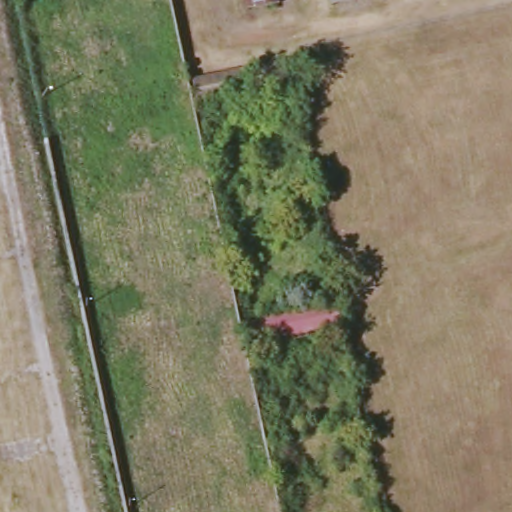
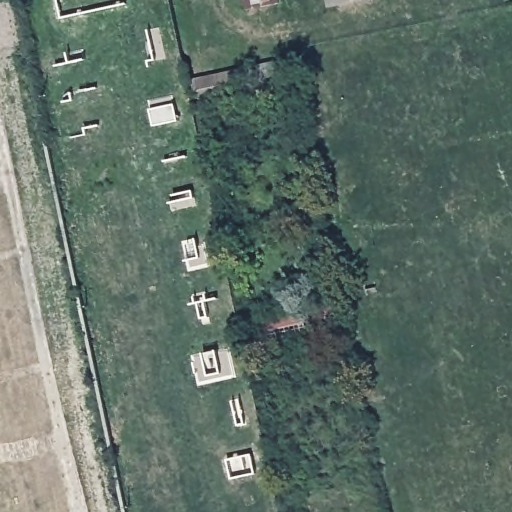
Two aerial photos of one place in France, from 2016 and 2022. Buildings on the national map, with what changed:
unchanged [(246,12),(243,0),(279,0),(280,5),(246,12)]
unchanged [(330,0),(368,0),(332,7),(330,0)]
unchanged [(291,86),(194,107),(189,82),(284,61),(291,86)]
unchanged [(342,331),(246,351),(241,325),(336,305),(342,331)]

